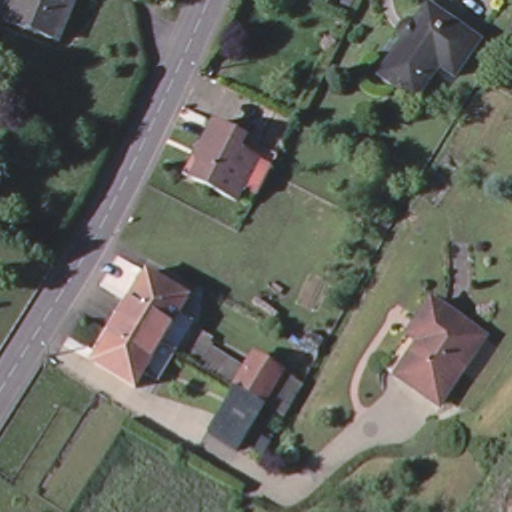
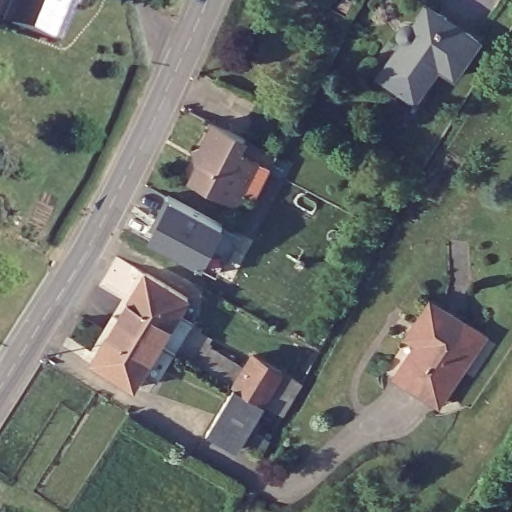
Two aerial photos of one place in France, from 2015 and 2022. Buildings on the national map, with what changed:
unchanged [(14,0),(76,0),(59,41),(11,21),(7,19),(14,0)]
unchanged [(404,35),(402,34),(400,32),(400,26),(402,21),(405,17),(410,17),(413,17),(416,18),(428,0),(429,0),(480,35),(455,71),(440,60),(416,94),(380,70),(404,35)]
unchanged [(190,144),(195,146),(209,117),(242,133),(273,149),(267,161),(265,166),(252,190),(239,183),(232,196),(187,172),(179,168),(190,144)]
new [(225,224),(239,232),(217,272),(204,265),(150,239),(156,227),(152,226),(168,195),(173,196),(225,224)]
unchanged [(125,377),(83,351),(110,306),(137,261),(180,287),(170,303),(184,311),(179,319),(202,332),(189,354),(178,347),(167,340),(149,369),(135,361),(125,377)]
unchanged [(485,331),(440,397),(398,370),(387,363),(410,329),(417,319),(432,296),(485,331)]
unchanged [(259,398),(230,381),(250,349),(278,366),(298,377),(280,410),(259,398)]
unchanged [(203,427),(230,381),(259,398),(232,444),(203,427)]
unchanged [(245,442),(253,427),(265,434),(257,449),(245,442)]

